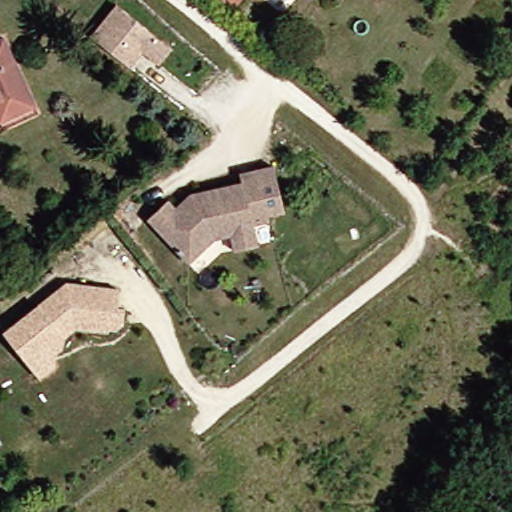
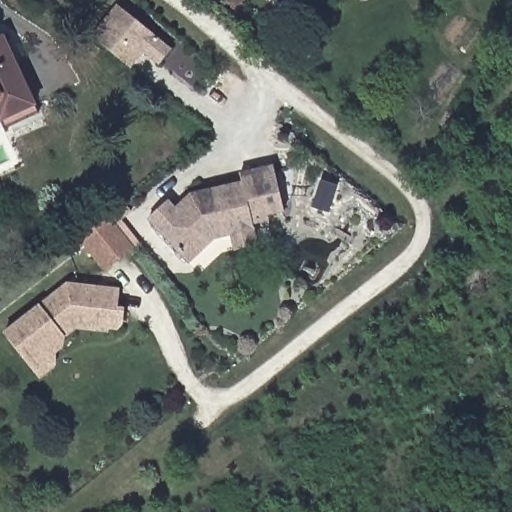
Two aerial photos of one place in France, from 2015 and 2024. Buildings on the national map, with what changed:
unchanged [(219,0),(244,0),(234,11),(219,0)]
unchanged [(151,74),(136,61),(123,76),(84,43),(111,13),(149,46),(164,59),(151,74)]
unchanged [(0,121),(0,53),(28,107),(0,122),(0,121)]
unchanged [(215,257),(208,244),(183,266),(143,223),(163,205),(170,212),(186,199),(237,187),(235,179),(268,171),(279,217),(246,225),(249,235),(252,250),(215,257)]
new [(104,219),(130,250),(102,272),(77,241),(104,219)]
unchanged [(24,362),(0,332),(62,283),(113,290),(110,308),(117,310),(115,325),(109,329),(101,328),(101,331),(68,328),(56,337),(55,347),(48,352),(50,365),(35,376),(24,362)]

